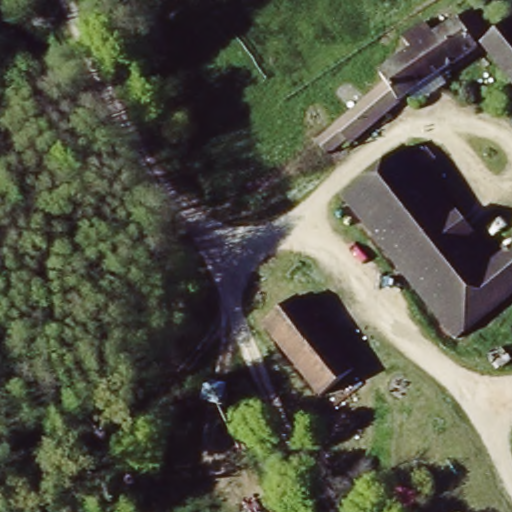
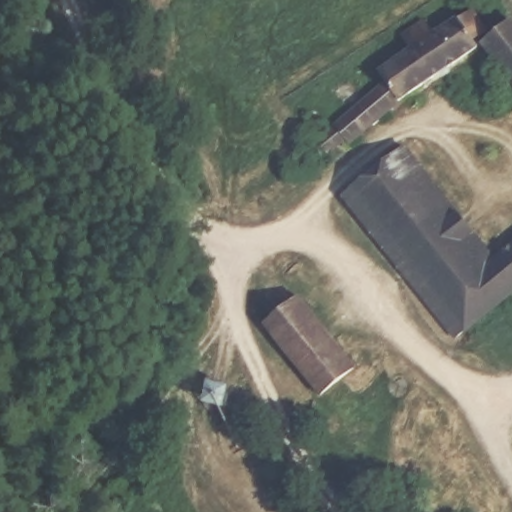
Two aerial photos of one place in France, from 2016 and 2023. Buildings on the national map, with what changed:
unchanged [(465,18),(483,43),(456,64),(437,38),(465,18)]
unchanged [(509,24),(512,28),(512,86),(483,43),(509,24)]
unchanged [(430,27),(437,38),(456,64),(337,154),(333,149),(317,162),(308,152),(377,96),(370,85),(403,66),(396,50),(430,27)]
unchanged [(477,269),(512,242),(512,301),(451,348),(346,192),(400,155),(477,269)]
unchanged [(302,298),(355,371),(319,397),(265,324),(302,298)]

